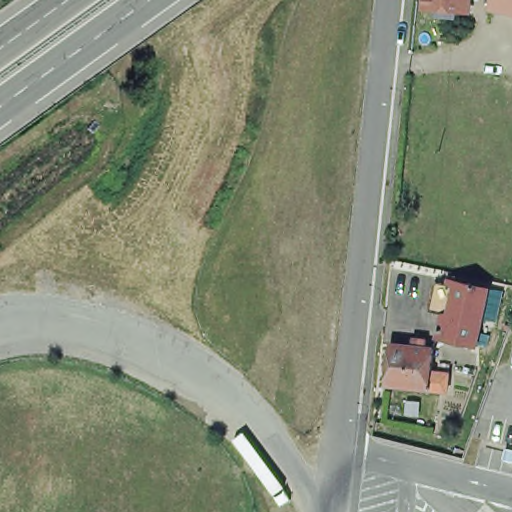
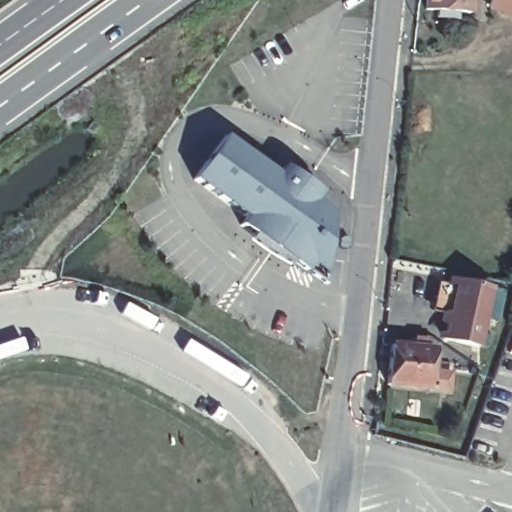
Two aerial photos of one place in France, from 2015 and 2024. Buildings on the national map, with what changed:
unchanged [(425,6),(425,0),(469,0),(468,9),(456,8),(455,15),(435,14),(436,7),(425,6)]
unchanged [(509,0),(512,0),(512,1),(509,0)]
new [(325,288),(295,265),(292,268),(263,252),(264,249),(250,239),(252,235),(240,226),(246,219),(194,179),(226,136),(276,172),(283,164),(323,193),(318,200),(332,210),(325,288)]
unchanged [(450,273),(485,280),(483,285),(493,288),(488,310),(478,309),(472,339),(436,332),(450,273)]
unchanged [(446,384),(429,382),(386,376),(390,336),(413,339),(414,330),(426,332),(425,341),(433,342),(430,363),(448,365),(446,384)]

